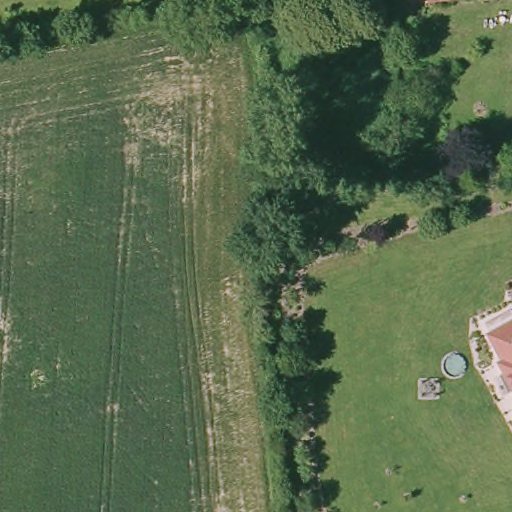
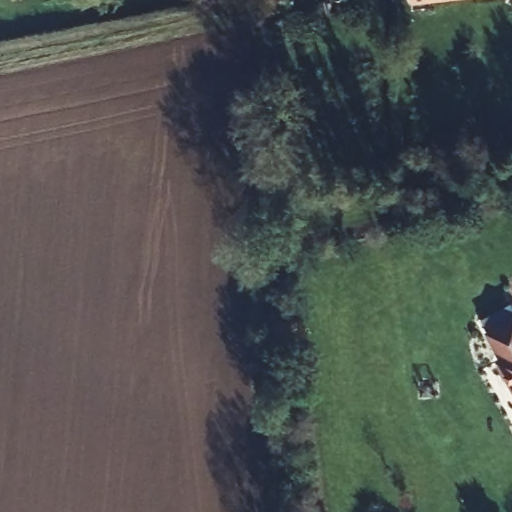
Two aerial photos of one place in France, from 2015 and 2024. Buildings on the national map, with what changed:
unchanged [(512,321),(512,352),(500,327),(512,321)]
unchanged [(512,354),(512,362),(509,356),(512,354)]

